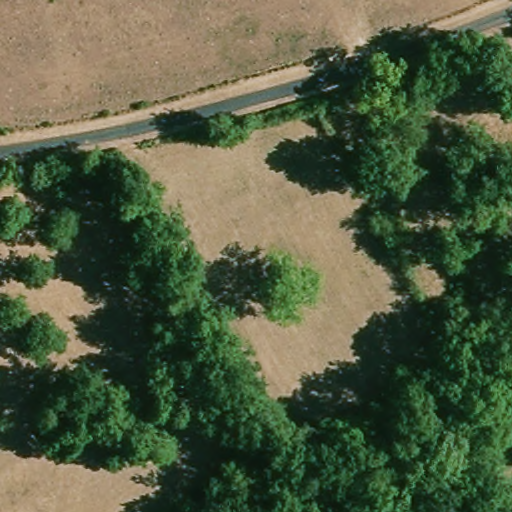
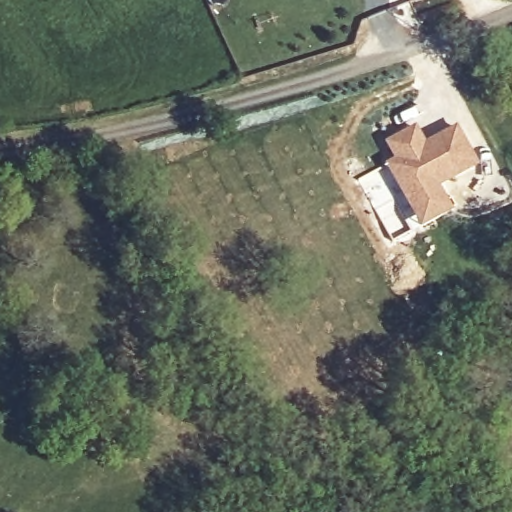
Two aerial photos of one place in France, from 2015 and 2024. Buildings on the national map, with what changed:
new [(479,167),(440,187),(452,213),(420,230),(385,165),(393,160),(384,143),(416,126),(425,143),(457,127),(479,167)]

